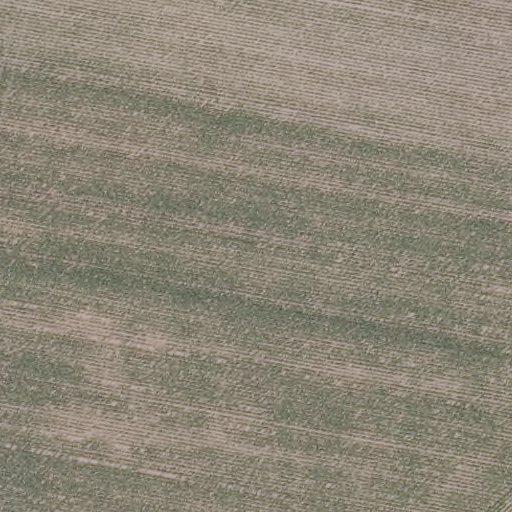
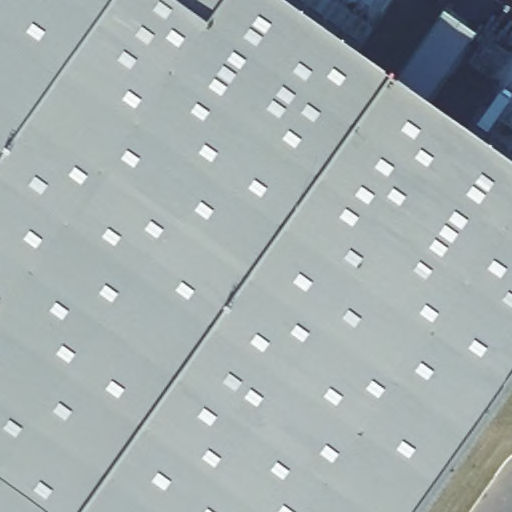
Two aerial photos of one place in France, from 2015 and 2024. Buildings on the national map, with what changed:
new [(512,421),(449,512),(0,512),(0,0),(286,0),(512,175),(512,421)]
new [(472,40),(424,107),(395,85),(442,17),(472,40)]

